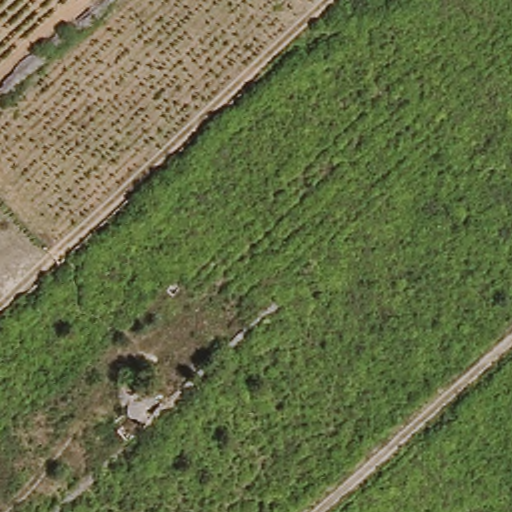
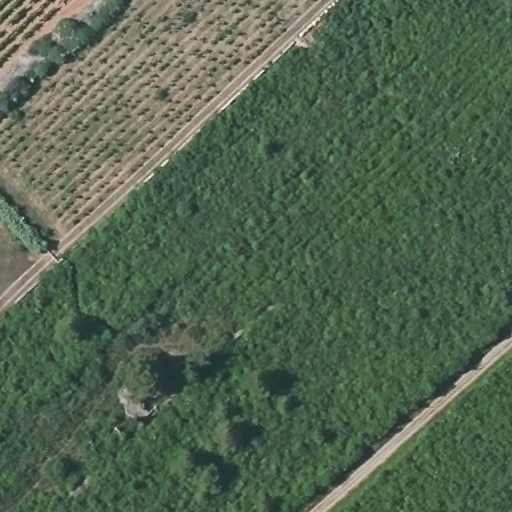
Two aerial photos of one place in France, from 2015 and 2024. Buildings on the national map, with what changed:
unchanged [(140,406),(153,393),(163,404),(150,416),(140,406)]

